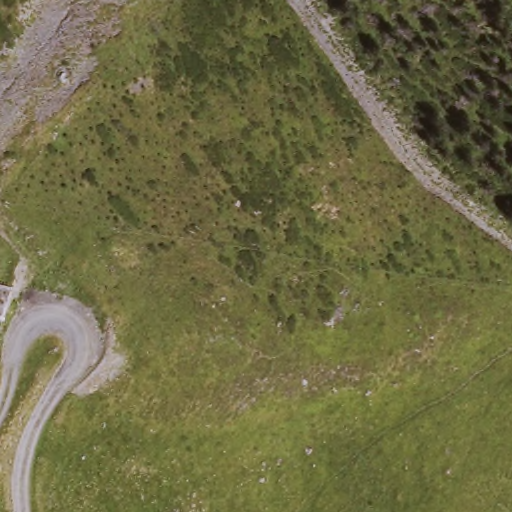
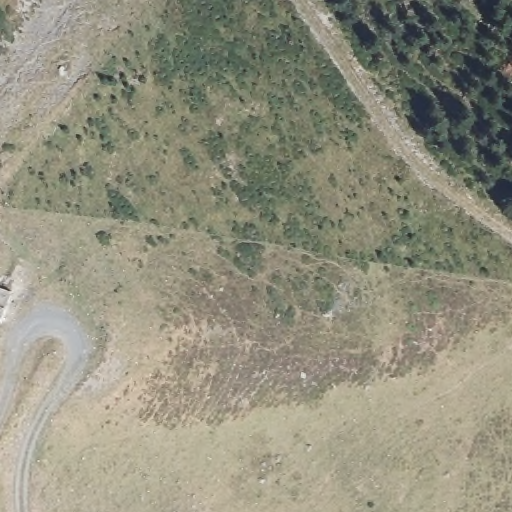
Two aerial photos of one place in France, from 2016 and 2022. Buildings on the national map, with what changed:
unchanged [(8,290),(3,306),(0,316),(0,287),(8,290)]

